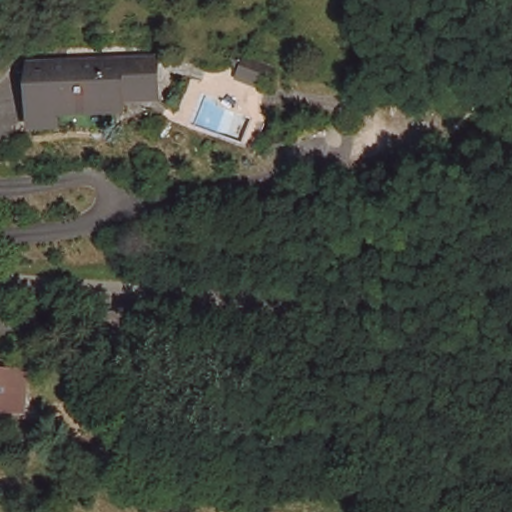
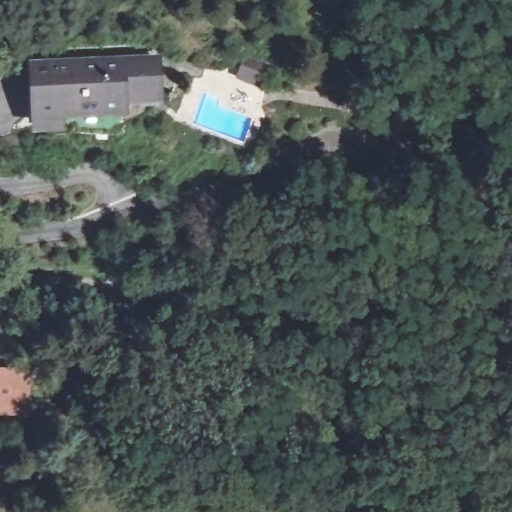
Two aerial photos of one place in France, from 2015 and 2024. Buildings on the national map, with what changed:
unchanged [(270,68),(264,85),(240,76),(246,59),(270,68)]
unchanged [(156,60),(157,85),(147,97),(123,98),(123,108),(75,110),(75,105),(58,105),(59,120),(35,121),(32,65),(156,60)]
unchanged [(108,321),(135,319),(136,334),(109,336),(108,321)]
unchanged [(14,407),(0,407),(0,366),(15,366),(14,407)]

